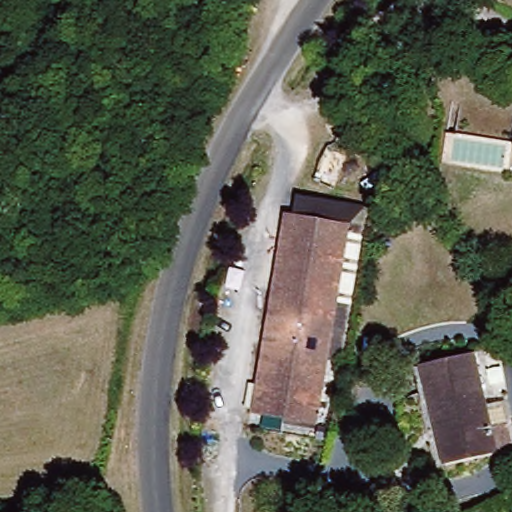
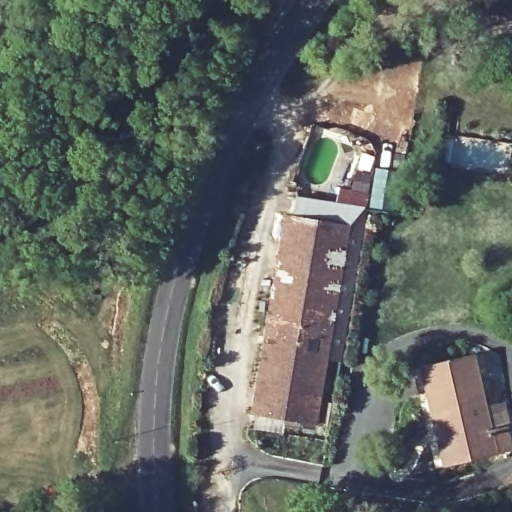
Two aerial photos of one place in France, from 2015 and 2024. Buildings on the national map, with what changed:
unchanged [(272,299),(284,222),(294,223),(297,203),(364,214),(348,311),(272,299)]
unchanged [(253,419),(272,299),(348,311),(338,362),(325,363),(314,429),(253,419)]
unchanged [(491,412),(506,409),(512,433),(512,452),(449,468),(426,373),(478,361),(491,412)]

